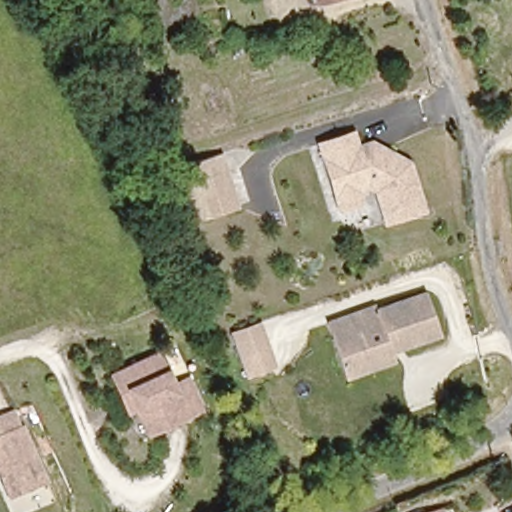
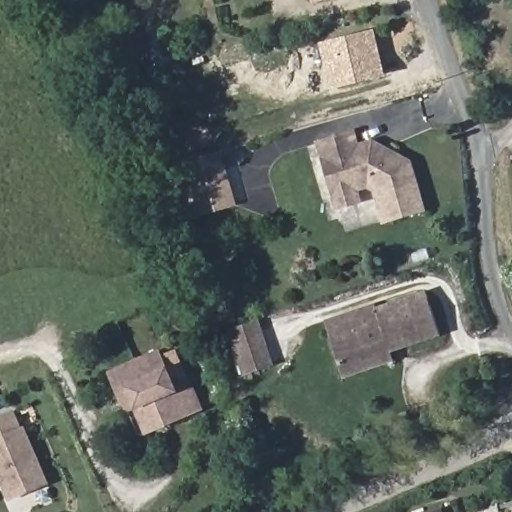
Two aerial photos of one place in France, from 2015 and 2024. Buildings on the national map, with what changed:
new [(320,44),(375,30),(385,76),(331,90),(320,44)]
unchanged [(381,187),(372,184),(340,194),(323,142),(357,131),(362,146),(377,140),(413,160),(428,206),(391,218),(381,187)]
unchanged [(225,176),(235,210),(202,220),(191,186),(225,176)]
unchanged [(393,362),(343,378),(330,336),(325,323),(375,307),(375,309),(425,293),(440,336),(401,350),(390,353),(393,362)]
unchanged [(245,378),(228,331),(260,320),(277,367),(245,378)]
unchanged [(128,401),(114,365),(161,345),(174,378),(189,372),(200,402),(146,423),(138,426),(128,401)]
unchanged [(0,488),(0,434),(19,427),(41,483),(4,497),(0,488)]
unchanged [(441,512),(438,512),(441,511),(441,512)]

